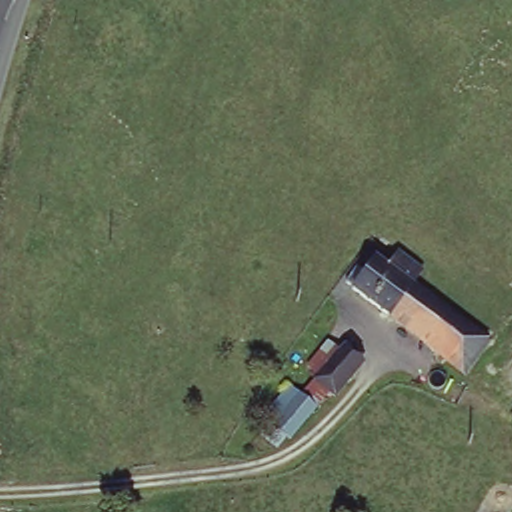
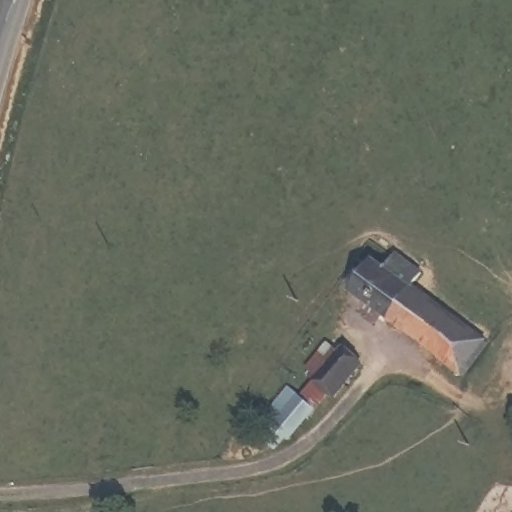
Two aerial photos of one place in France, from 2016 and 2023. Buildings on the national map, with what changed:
unchanged [(352,285),(355,280),(347,274),(357,260),(365,266),(374,254),(387,262),(396,249),(398,246),(424,265),(412,280),(484,335),(461,367),(352,285)]
unchanged [(264,407),(291,375),(304,385),(317,371),(315,368),(322,359),(313,351),(328,330),(366,360),(344,389),(334,381),(293,432),(285,425),(274,437),(258,425),(269,411),(264,407)]

